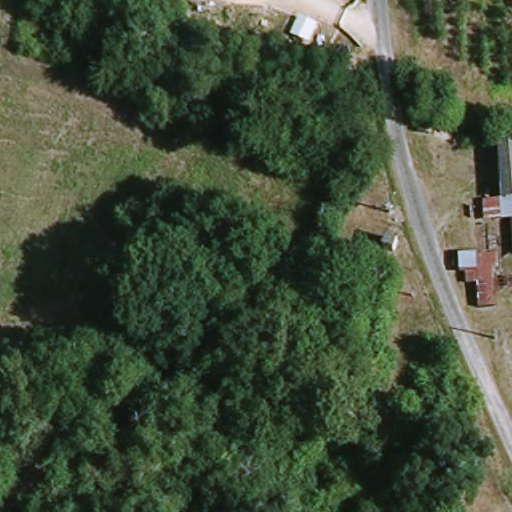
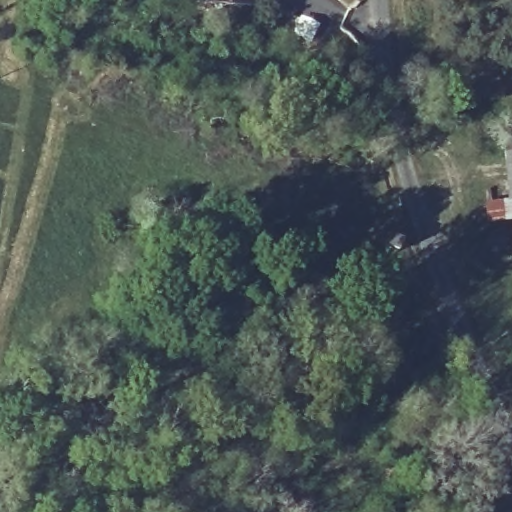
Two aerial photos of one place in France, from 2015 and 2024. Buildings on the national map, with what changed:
unchanged [(229,6),(188,3),(188,0),(229,0),(229,6)]
unchanged [(504,135),(512,141),(512,249),(504,248),(504,135)]
unchanged [(394,257),(381,251),(386,238),(400,243),(394,257)]
demolished [(500,272),(497,272),(496,308),(480,308),(479,286),(468,288),(465,257),(500,257),(500,272)]

